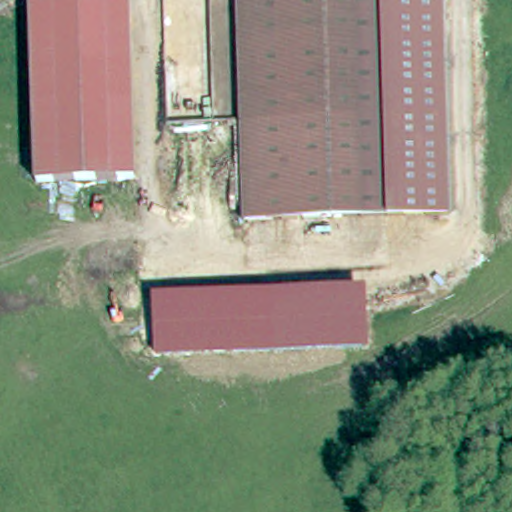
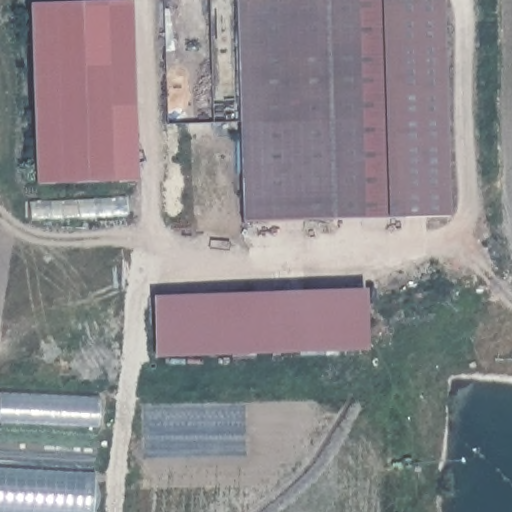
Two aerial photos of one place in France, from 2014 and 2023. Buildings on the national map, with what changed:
unchanged [(402,222),(245,225),(244,122),(241,0),(447,0),(452,221),(402,222)]
unchanged [(122,1),(126,179),(35,181),(31,2),(122,1)]
unchanged [(364,291),(367,351),(153,356),(151,294),(364,291)]
new [(100,427),(0,423),(0,393),(100,397),(100,427)]
new [(96,512),(0,512),(0,470),(99,475),(96,512)]

